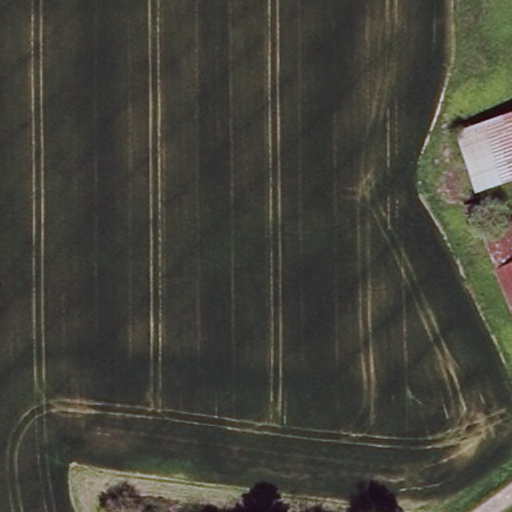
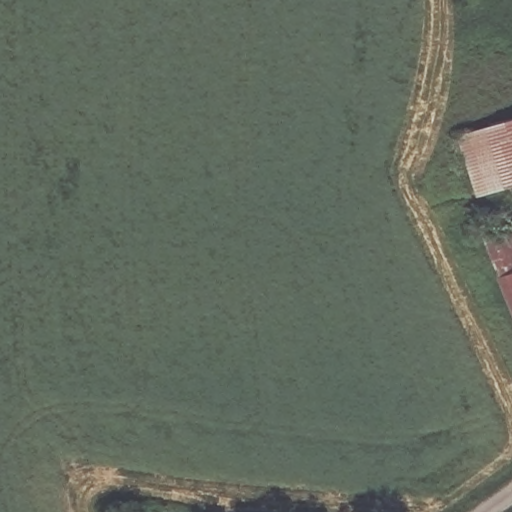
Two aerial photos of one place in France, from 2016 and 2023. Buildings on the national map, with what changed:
unchanged [(512,115),(512,178),(476,189),(459,130),(512,115)]
unchanged [(512,225),(512,271),(501,276),(484,236),(512,225)]
unchanged [(512,271),(512,302),(501,276),(512,271)]

